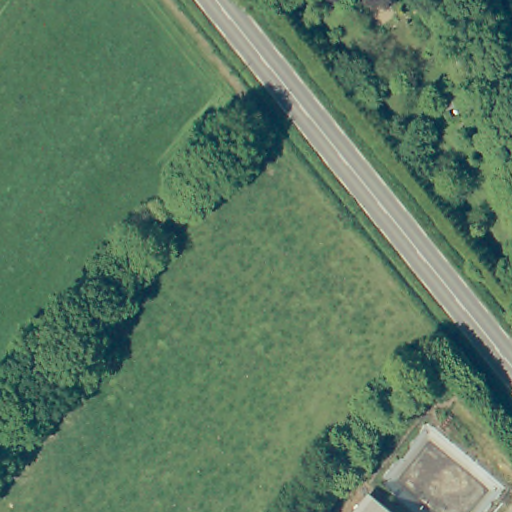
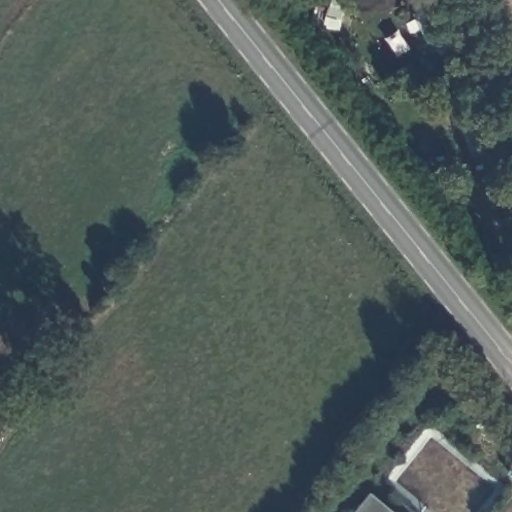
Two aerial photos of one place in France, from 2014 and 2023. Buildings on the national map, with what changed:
unchanged [(397,512),(359,512),(375,493),(397,512)]

